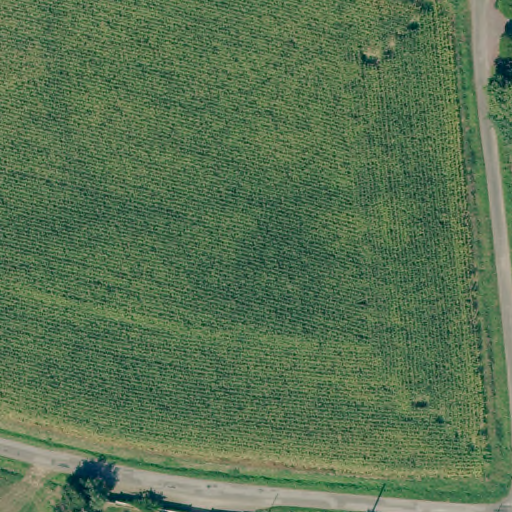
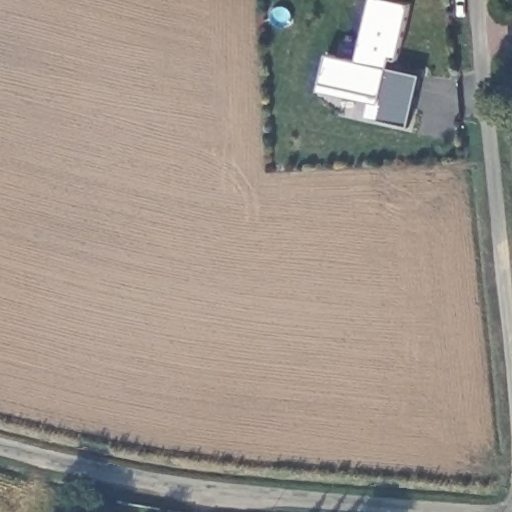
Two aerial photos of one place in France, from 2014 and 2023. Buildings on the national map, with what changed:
new [(322,92),(323,85),(330,55),(360,62),(373,0),(397,0),(413,4),(401,60),(393,59),(391,67),(424,75),(413,127),(391,123),(370,119),(373,102),(322,92)]

